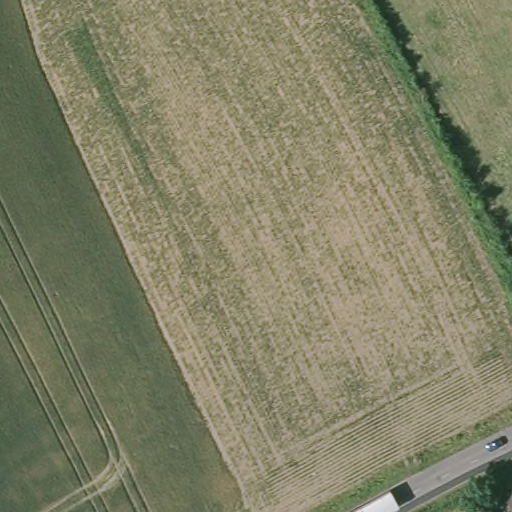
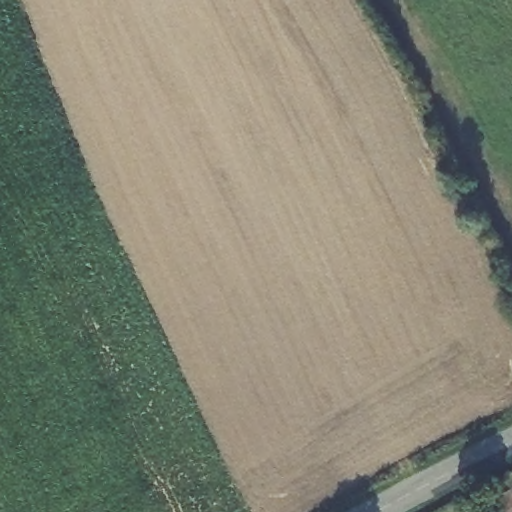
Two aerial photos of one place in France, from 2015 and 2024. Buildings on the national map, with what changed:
[]

